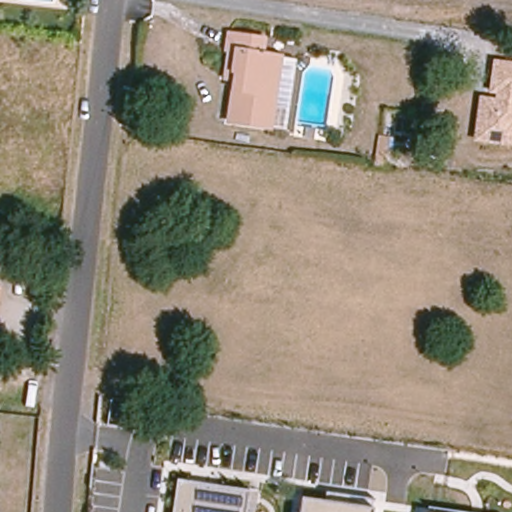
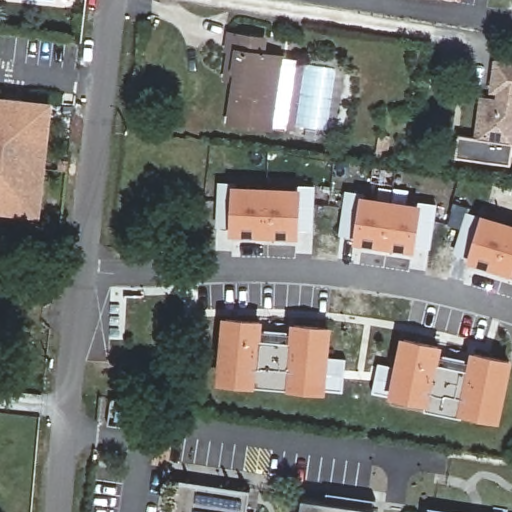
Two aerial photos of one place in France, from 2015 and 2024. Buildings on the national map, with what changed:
demolished [(398,20),(396,35),(358,29),(361,14),(398,20)]
unchanged [(238,49),(229,49),(232,34),(267,39),(264,54),(283,56),(272,128),(230,121),(235,90),(237,78),(234,77),(238,49)]
unchanged [(283,56),(297,59),(288,130),(272,128),(283,56)]
unchanged [(474,141),(479,96),(495,99),(496,93),(489,93),(494,59),(512,62),(512,146),(474,141)]
new [(0,207),(0,98),(49,103),(39,212),(0,207)]
unchanged [(391,138),(387,166),(377,165),(376,165),(381,136),(391,138)]
new [(298,204),(297,234),(234,232),(235,202),(234,225),(219,225),(220,201),(221,183),(237,184),(237,188),(298,191),(298,186),(314,187),(313,205),(312,229),(298,228),(298,204)]
new [(413,244),(413,248),(358,239),(362,210),(358,235),(342,233),(346,209),(348,192),(365,194),(364,199),(418,207),(419,202),(436,204),(434,221),(429,246),(413,244)]
demolished [(39,219),(6,217),(8,202),(38,204),(39,219)]
new [(472,259),(472,257),(456,252),(463,229),(468,213),(512,226),(512,271),(472,259)]
unchanged [(0,285),(1,285),(0,293),(0,285)]
new [(260,322),(260,328),(295,331),(295,325),(329,328),(326,356),(346,357),(344,389),(292,386),(292,387),(254,384),(254,383),(222,380),(227,319),(260,322)]
new [(399,367),(405,339),(440,347),(439,353),(473,359),(474,354),(510,361),(499,417),(464,411),(464,415),(393,401),(394,396),(374,392),(380,363),(399,367)]
unchanged [(178,480),(249,490),(246,512),(173,512),(178,480)]
unchanged [(302,498),(324,501),(327,493),(349,496),(348,504),(374,508),(373,512),(299,512),(302,498)]
unchanged [(428,508),(465,512),(427,512),(428,508)]

